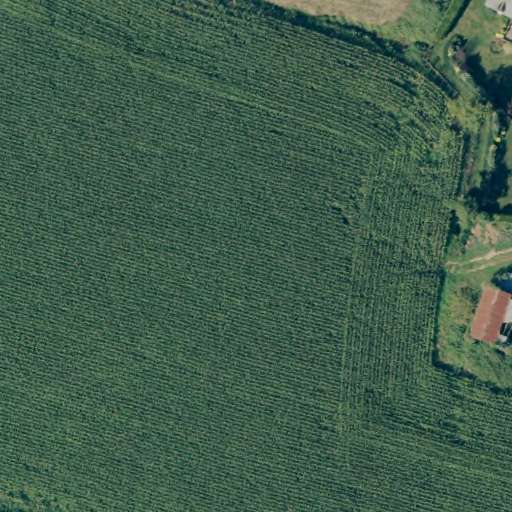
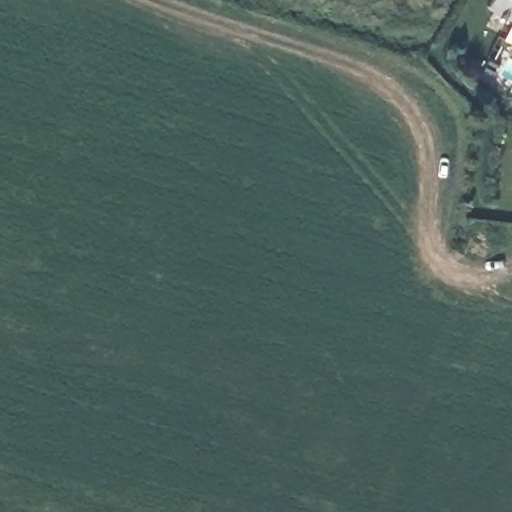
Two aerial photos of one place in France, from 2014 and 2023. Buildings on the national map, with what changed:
unchanged [(488,0),(512,0),(512,14),(487,2),(488,0)]
demolished [(497,291),(506,274),(512,276),(512,344),(508,355),(469,341),(485,288),(497,291)]

